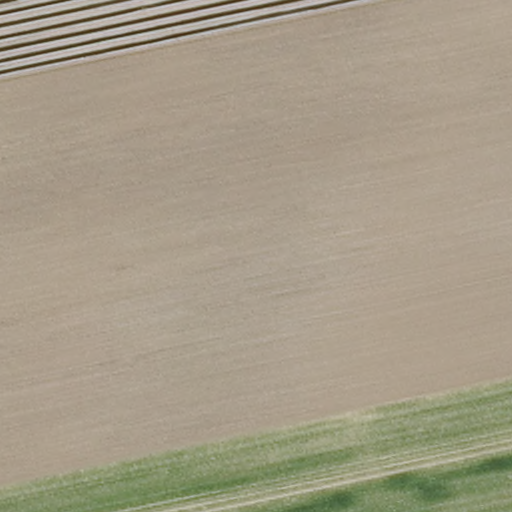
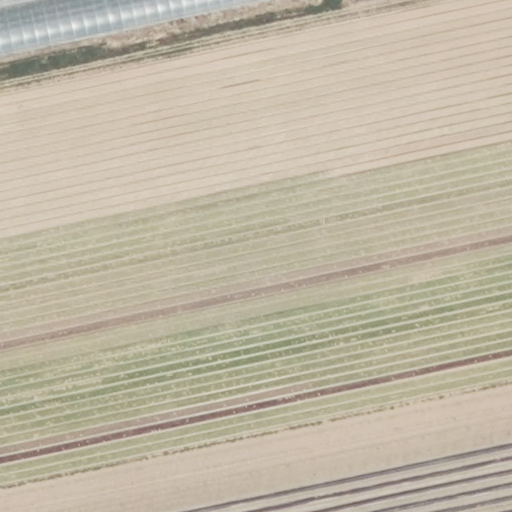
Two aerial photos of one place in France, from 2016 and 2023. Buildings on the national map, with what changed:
new [(0,54),(0,0),(262,0),(0,54)]

